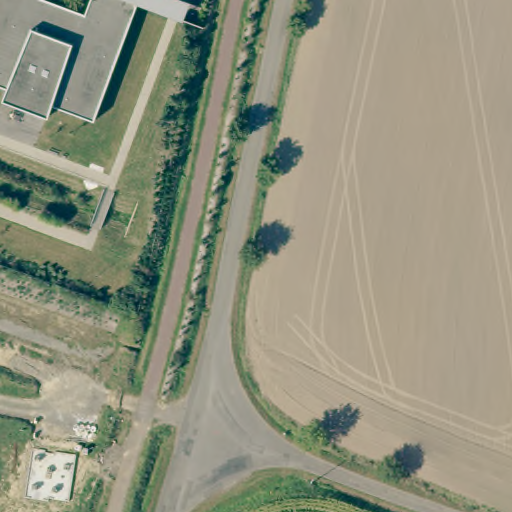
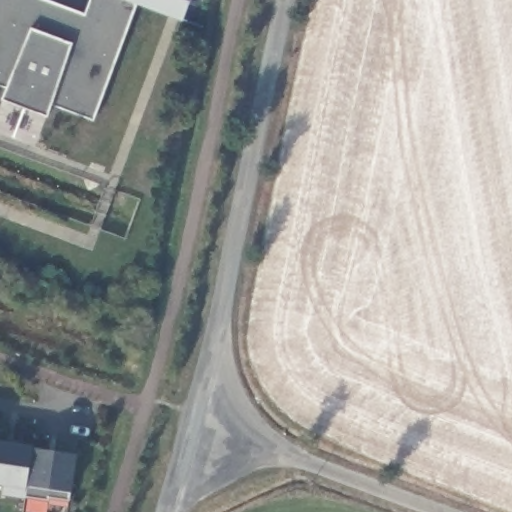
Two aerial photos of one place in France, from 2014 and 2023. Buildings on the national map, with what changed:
unchanged [(51,103),(46,116),(2,100),(7,87),(0,85),(0,0),(184,0),(189,2),(182,22),(135,5),(92,121),(51,103)]
new [(76,455),(70,493),(68,501),(48,498),(48,501),(24,499),(0,495),(0,488),(0,486),(0,443),(76,455)]

